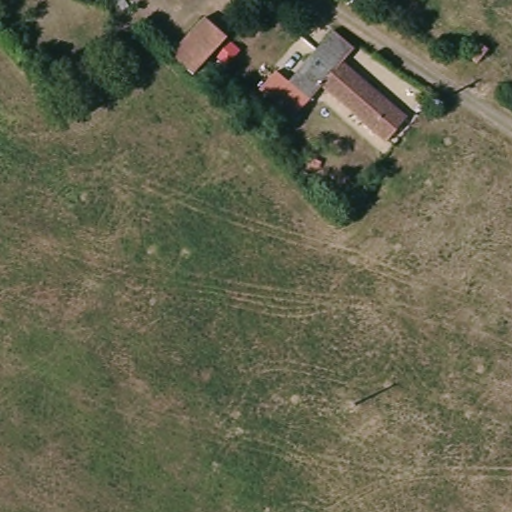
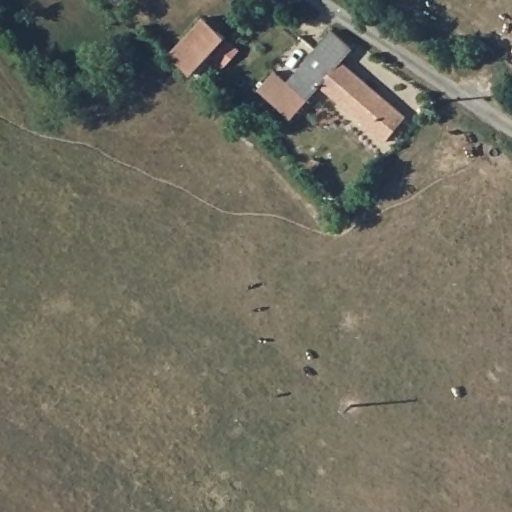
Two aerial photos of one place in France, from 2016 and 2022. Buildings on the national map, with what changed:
unchanged [(228,42),(194,79),(171,61),(205,24),(228,42)]
unchanged [(312,101),(290,84),(333,30),(357,48),(343,66),(408,118),(388,144),(322,90),(312,101)]

